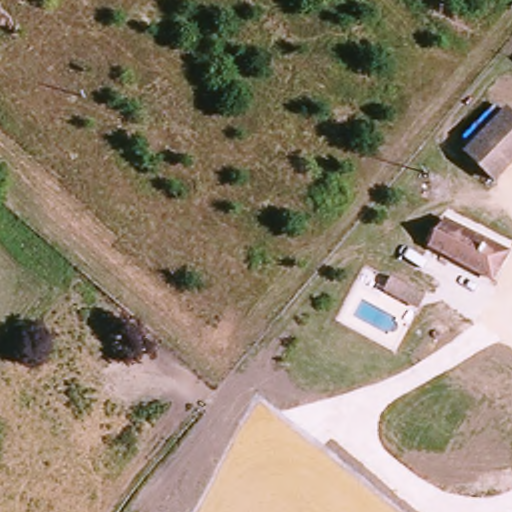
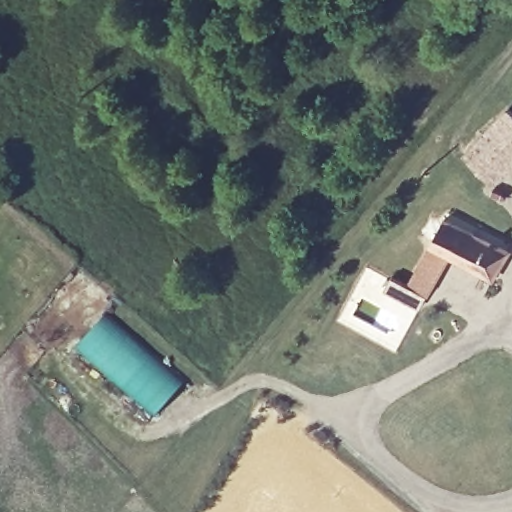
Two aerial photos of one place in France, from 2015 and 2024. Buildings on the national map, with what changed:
unchanged [(512,155),(490,179),(460,150),(503,106),(512,115),(512,155)]
unchanged [(505,252),(490,282),(427,247),(442,220),(505,252)]
unchanged [(415,284),(410,298),(391,290),(397,276),(415,284)]
new [(72,348),(104,313),(182,383),(151,418),(72,348)]

